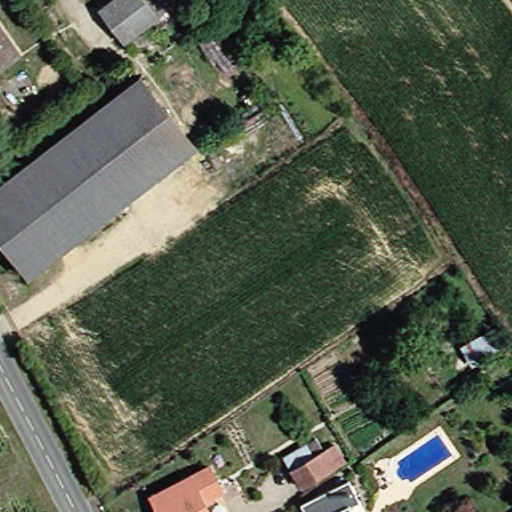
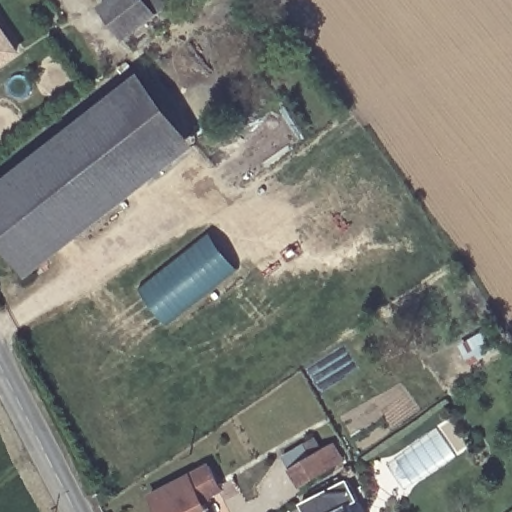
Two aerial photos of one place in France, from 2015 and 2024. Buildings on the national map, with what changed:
unchanged [(125,42),(99,10),(112,0),(160,0),(166,7),(125,42)]
unchanged [(0,17),(26,51),(0,73),(0,17)]
unchanged [(125,94),(149,76),(204,148),(180,168),(125,94)]
unchanged [(0,231),(0,189),(125,94),(180,168),(34,275),(0,231)]
new [(162,326),(136,289),(210,233),(236,270),(162,326)]
unchanged [(302,488),(293,470),(325,456),(334,471),(302,488)]
unchanged [(194,475),(213,512),(164,512),(155,496),(194,475)]
unchanged [(354,507),(357,512),(308,512),(306,509),(350,483),(363,502),(354,507)]

